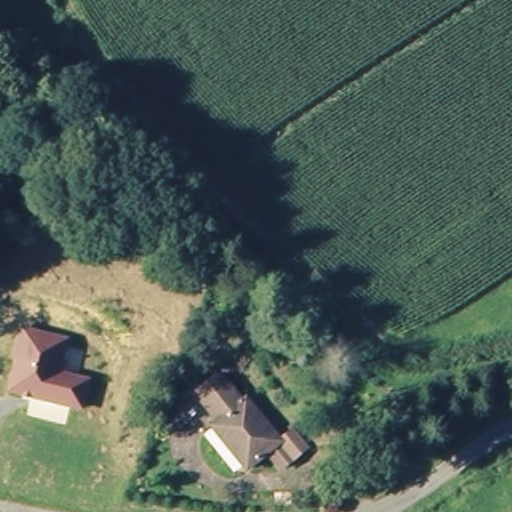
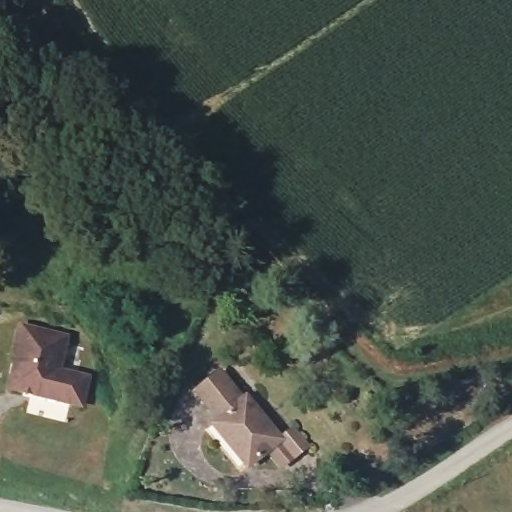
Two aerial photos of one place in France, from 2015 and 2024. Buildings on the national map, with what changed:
unchanged [(14,383),(21,354),(16,353),(23,326),(69,338),(61,372),(90,381),(83,408),(14,389),(14,383)]
unchanged [(281,472),(263,448),(238,471),(206,429),(214,423),(194,393),(218,375),(239,404),(250,395),(296,458),(281,472)]

